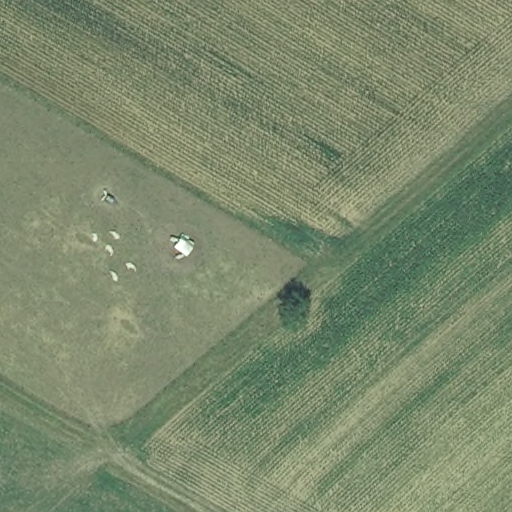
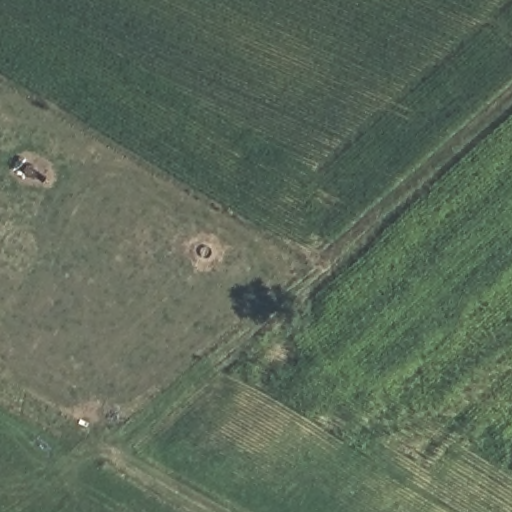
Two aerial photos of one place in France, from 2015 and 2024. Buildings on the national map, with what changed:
[]

